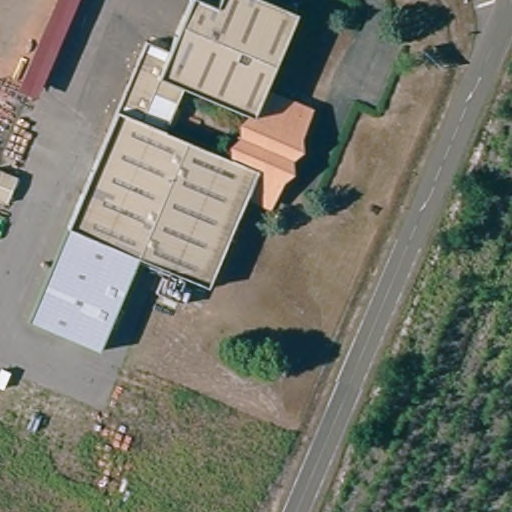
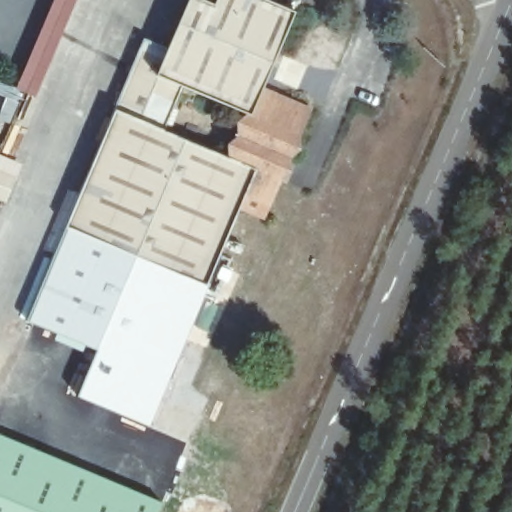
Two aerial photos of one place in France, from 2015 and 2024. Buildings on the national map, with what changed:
demolished [(0,72),(0,0),(31,0),(1,72),(0,72)]
unchanged [(77,0),(31,108),(10,98),(52,0),(77,0)]
unchanged [(307,110),(267,204),(245,194),(206,286),(134,255),(64,226),(143,38),(166,48),(187,0),(204,0),(213,4),(215,0),(265,0),(295,12),(261,91),(307,110)]
unchanged [(4,203),(0,201),(0,171),(6,173),(15,177),(4,203)]
unchanged [(95,347),(26,316),(64,226),(134,255),(95,347)]
new [(134,255),(206,286),(151,427),(77,395),(98,349),(95,347),(134,255)]
new [(163,500),(158,512),(0,512),(0,433),(163,500)]

